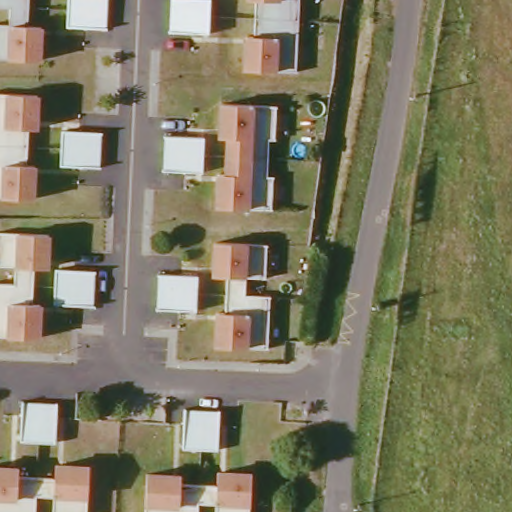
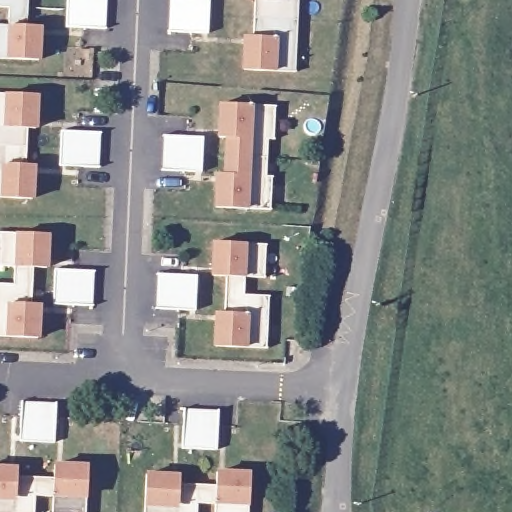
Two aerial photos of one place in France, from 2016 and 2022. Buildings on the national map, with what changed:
unchanged [(14,10),(0,10),(0,0),(33,0),(32,29),(45,30),(44,63),(0,62),(0,28),(13,28),(14,10)]
unchanged [(72,0),(111,0),(110,26),(72,25),(72,0)]
unchanged [(175,0),(215,0),(214,31),(175,30),(175,0)]
unchanged [(247,34),(255,33),(256,0),(299,0),(297,69),(245,67),(247,34)]
unchanged [(41,127),(32,127),(32,164),(39,164),(38,197),(0,196),(0,92),(42,93),(41,127)]
unchanged [(219,177),(227,177),(228,140),(221,140),(222,106),(277,108),(275,141),(270,142),(268,179),(273,179),(272,212),(218,211),(219,177)]
unchanged [(67,129),(106,130),(105,166),(67,164),(67,129)]
unchanged [(165,133),(205,135),(203,170),(164,168),(165,133)]
unchanged [(20,265),(2,265),(2,231),(54,233),(53,267),(40,267),(38,303),(45,303),(45,337),(0,336),(0,283),(20,283),(20,265)]
unchanged [(223,316),(232,316),(233,279),(220,279),(221,245),(272,247),(272,280),(252,280),(251,298),(275,299),(274,351),(222,350),(223,316)]
unchanged [(60,268),(100,269),(99,304),(60,303),(60,268)]
unchanged [(160,272),(198,274),(197,308),(158,307),(160,272)]
unchanged [(23,401),(58,402),(57,442),(22,441),(23,401)]
unchanged [(190,403),(226,404),(225,443),(190,442),(190,403)]
unchanged [(25,476),(61,477),(62,464),(95,465),(93,512),(60,512),(60,496),(42,495),(42,512),(0,512),(0,467),(25,468),(25,476)]
unchanged [(182,480),(182,488),(219,489),(219,476),(253,477),(252,512),(218,512),(218,507),(200,507),(200,512),(148,512),(148,478),(182,480)]

